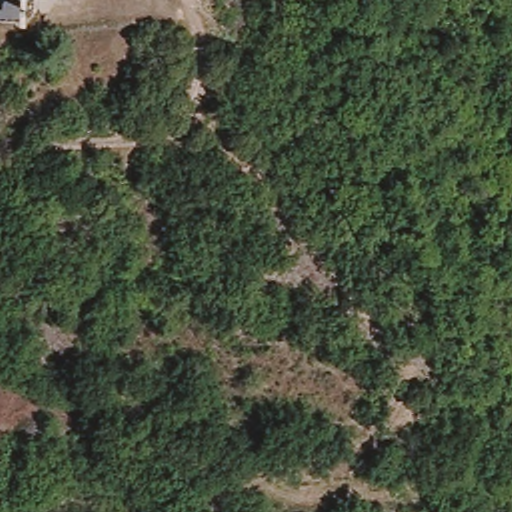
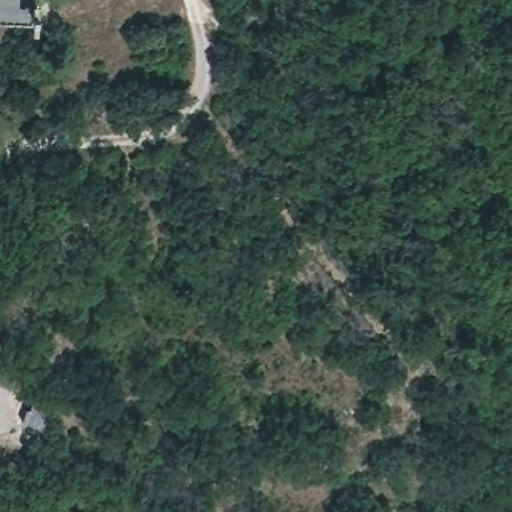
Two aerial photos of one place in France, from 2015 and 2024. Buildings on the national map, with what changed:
unchanged [(42,6),(33,5),(33,11),(0,11),(0,0),(42,0),(42,6)]

